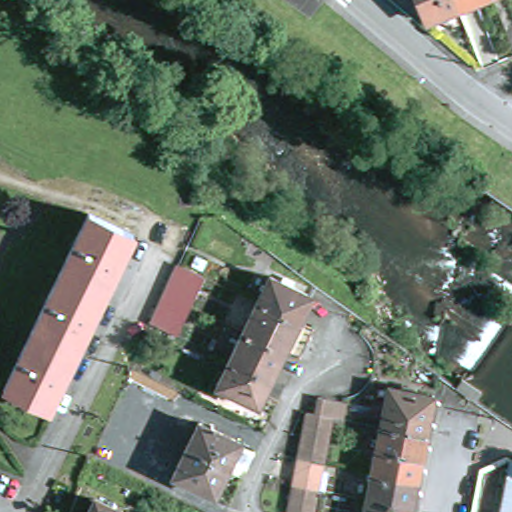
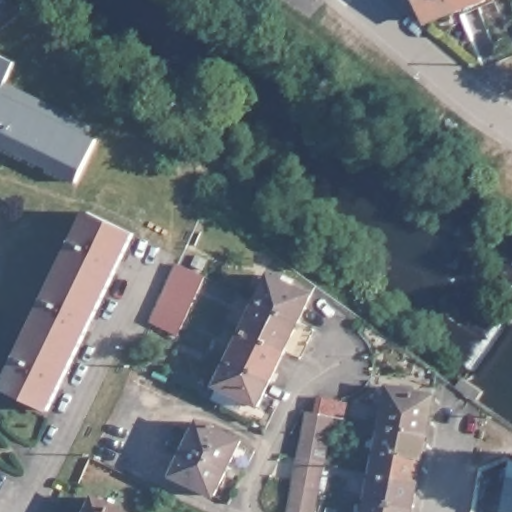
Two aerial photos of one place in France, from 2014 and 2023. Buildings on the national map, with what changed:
unchanged [(466,11),(433,23),(423,0),(492,0),(466,11)]
new [(15,71),(6,93),(94,134),(74,180),(0,145),(0,64),(15,71)]
unchanged [(134,243),(51,417),(8,396),(90,222),(134,243)]
unchanged [(168,297),(174,283),(181,268),(207,280),(201,296),(195,310),(188,325),(181,339),(155,326),(161,312),(168,297)]
unchanged [(278,281),(317,300),(305,325),(266,306),(278,281)]
unchanged [(291,355),(252,335),(266,306),(305,325),(291,355)]
unchanged [(291,355),(277,383),(238,365),(252,335),(291,355)]
unchanged [(277,383),(265,408),(226,389),(238,365),(277,383)]
unchanged [(383,423),(391,382),(436,391),(428,432),(383,423)]
unchanged [(301,460),(305,437),(310,413),(332,417),(335,418),(331,442),(326,465),(321,490),(317,512),(291,512),(297,485),(301,460)]
unchanged [(242,441),(217,494),(178,474),(203,421),(242,441)]
unchanged [(428,432),(424,455),(379,446),(383,423),(428,432)]
unchanged [(424,455),(419,479),(374,470),(379,446),(424,455)]
unchanged [(503,512),(512,468),(512,512),(503,512)]
unchanged [(419,479),(414,503),(402,501),(369,495),(374,470),(419,479)]
unchanged [(402,501),(414,503),(412,512),(365,512),(369,495),(402,501)]
unchanged [(118,512),(94,512),(99,502),(118,512)]

